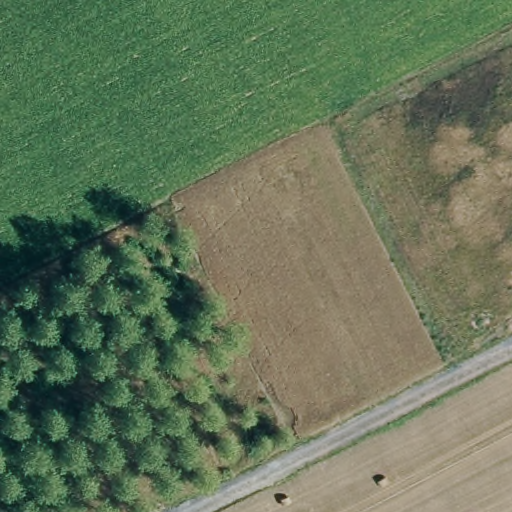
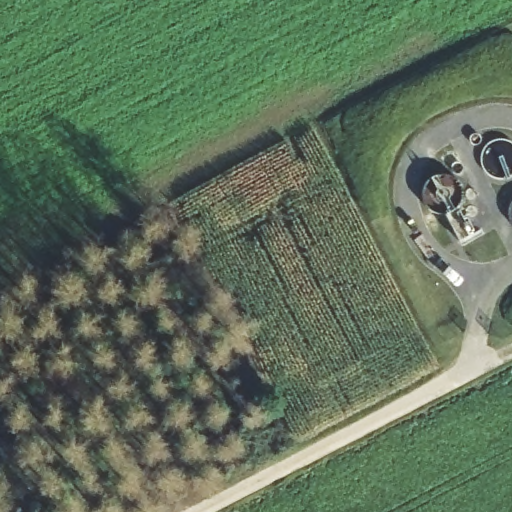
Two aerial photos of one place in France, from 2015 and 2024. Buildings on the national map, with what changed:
[]

